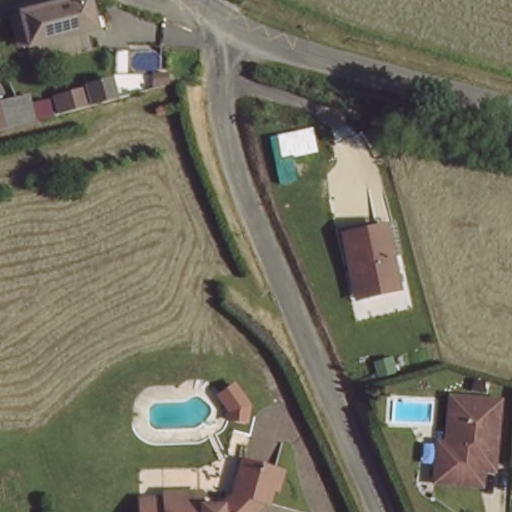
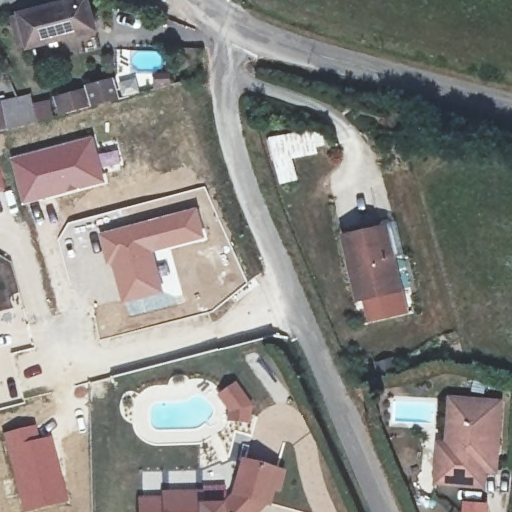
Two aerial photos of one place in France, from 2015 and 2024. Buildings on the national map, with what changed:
unchanged [(72,0),(88,0),(95,25),(70,33),(28,44),(21,13),(61,3),(72,0)]
unchanged [(113,81),(118,99),(95,104),(90,86),(113,81)]
unchanged [(46,111),(0,123),(0,96),(40,86),(46,111)]
unchanged [(90,104),(60,113),(56,98),(86,90),(90,104)]
new [(93,134),(98,151),(118,146),(121,164),(103,169),(106,184),(21,205),(9,156),(93,134)]
new [(0,192),(0,172),(5,191),(0,192)]
new [(198,205),(207,239),(156,252),(168,294),(122,304),(98,230),(198,205)]
unchanged [(346,260),(340,227),(374,220),(381,253),(388,251),(395,283),(361,290),(353,292),(346,260)]
unchanged [(225,389),(238,378),(255,396),(251,412),(234,409),(236,401),(225,389)]
unchanged [(483,462),(481,477),(481,478),(437,473),(439,459),(441,438),(447,438),(451,392),(500,397),(495,446),(493,463),(483,462)]
new [(35,424),(40,439),(53,436),(69,502),(26,512),(21,512),(2,433),(35,424)]
unchanged [(140,499),(165,498),(164,493),(200,492),(201,504),(225,503),(237,496),(245,469),(277,477),(268,510),(265,509),(261,512),(141,512),(140,499)]

